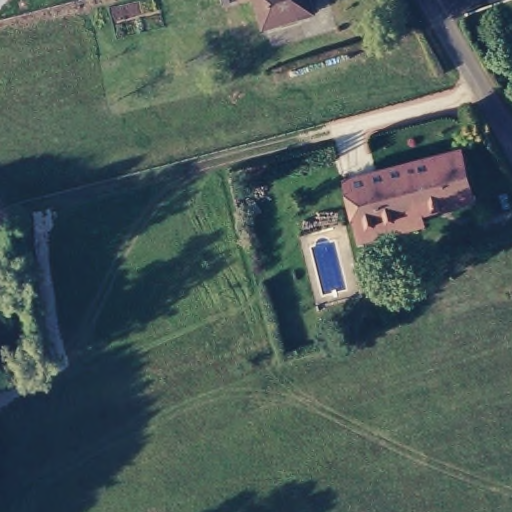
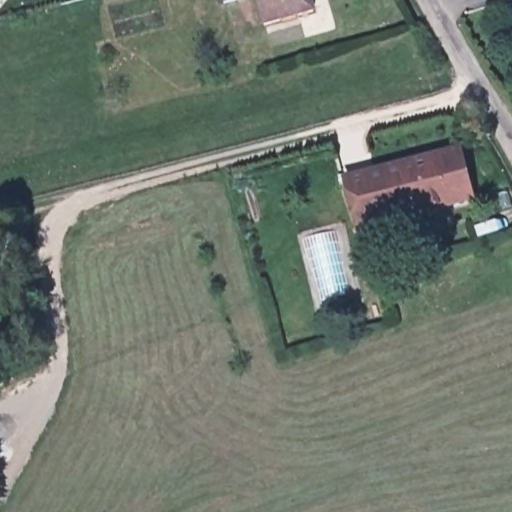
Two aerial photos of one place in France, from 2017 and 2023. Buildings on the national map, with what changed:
unchanged [(311,3),(270,23),(261,0),(310,0),(311,3)]
unchanged [(461,146),(474,190),(375,218),(378,238),(361,242),(345,172),(461,146)]

